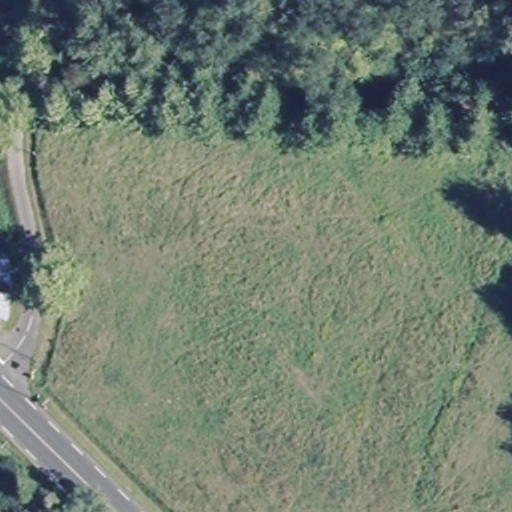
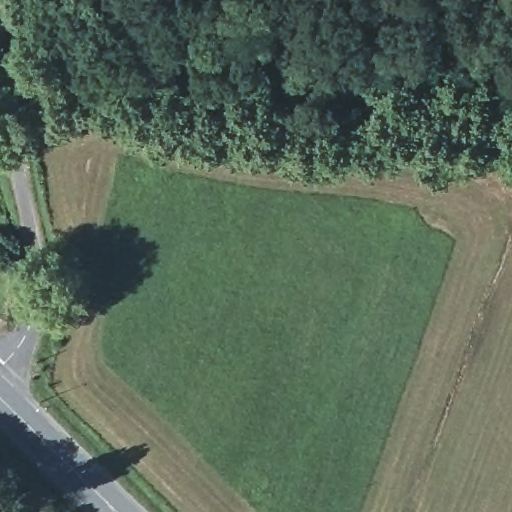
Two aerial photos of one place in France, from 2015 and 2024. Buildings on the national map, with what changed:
unchanged [(11,252),(13,292),(11,319),(3,341),(0,339),(0,252),(11,252)]

